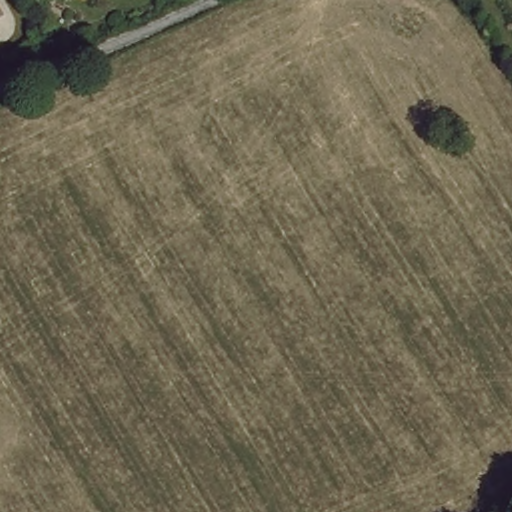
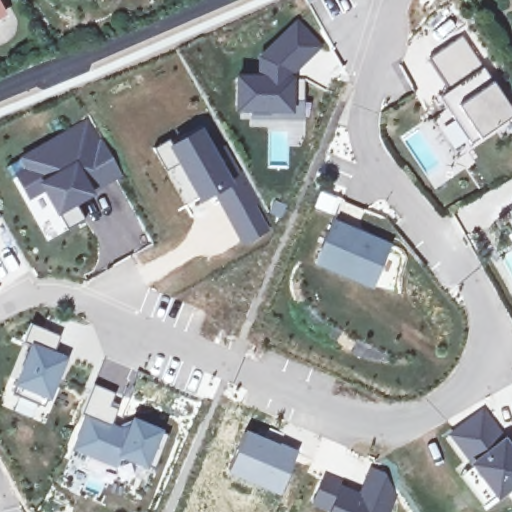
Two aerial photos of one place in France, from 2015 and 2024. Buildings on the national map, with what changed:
unchanged [(3,13),(0,15),(0,7),(3,13)]
new [(253,112),(239,112),(240,80),(262,80),(262,60),(287,35),(298,25),(320,48),(309,58),(293,74),(306,81),(306,103),(306,122),(253,122),(253,117),(253,112)]
new [(452,88),(431,58),(464,34),(512,104),(512,116),(474,142),(454,114),(442,96),(450,90),(452,88)]
new [(67,231),(57,213),(43,190),(28,199),(16,178),(28,171),(21,160),(85,122),(98,144),(102,142),(121,174),(89,192),(87,187),(71,196),(74,203),(85,220),(67,231)]
new [(203,124),(234,182),(213,192),(198,200),(167,144),(203,124)]
new [(234,182),(243,196),(249,192),(271,229),(244,246),(213,192),(234,182)]
new [(5,219),(0,223),(0,210),(5,219)]
new [(512,224),(511,221),(512,221),(512,224)]
new [(337,222),(392,245),(375,286),(321,263),(337,222)]
new [(5,389),(12,392),(31,346),(23,343),(31,322),(60,334),(53,352),(71,361),(46,424),(0,404),(0,400),(5,389)]
new [(89,407),(84,406),(93,385),(131,401),(124,416),(170,436),(154,474),(135,466),(125,483),(108,475),(110,471),(85,460),(88,452),(74,447),(89,407)]
new [(512,438),(512,487),(504,493),(468,444),(459,432),(463,429),(486,412),(494,424),(499,421),(512,438)]
new [(246,429),(296,448),(277,493),(227,472),(246,429)]
new [(504,492),(490,503),(468,473),(482,462),(504,492)]
new [(404,492),(396,512),(331,512),(333,506),(315,499),(326,472),(345,480),(343,485),(370,496),(381,468),(395,474),(404,492)]

